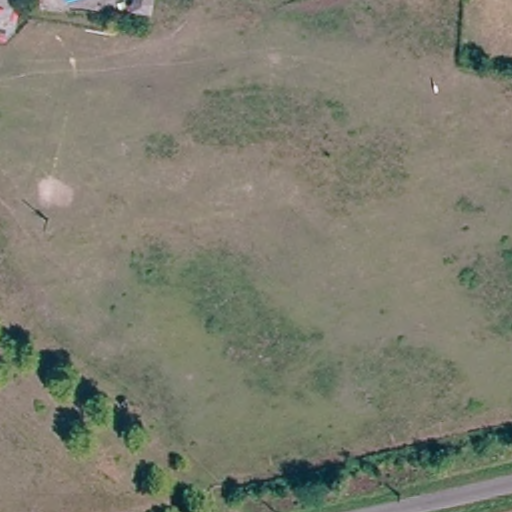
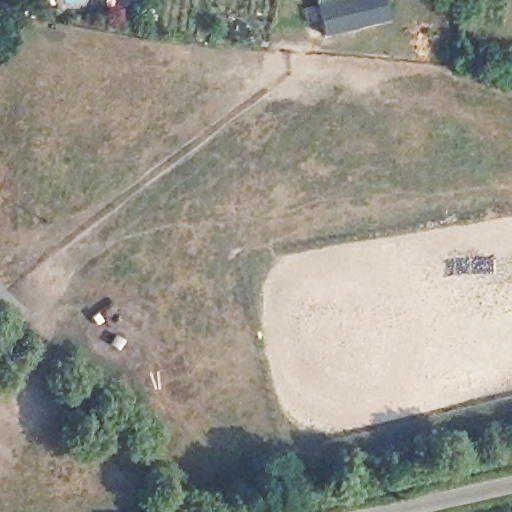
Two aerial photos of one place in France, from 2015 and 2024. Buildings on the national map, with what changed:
new [(324,36),(316,0),(387,0),(392,20),(324,36)]
demolished [(501,0),(512,2),(512,60),(490,55),(501,0)]

